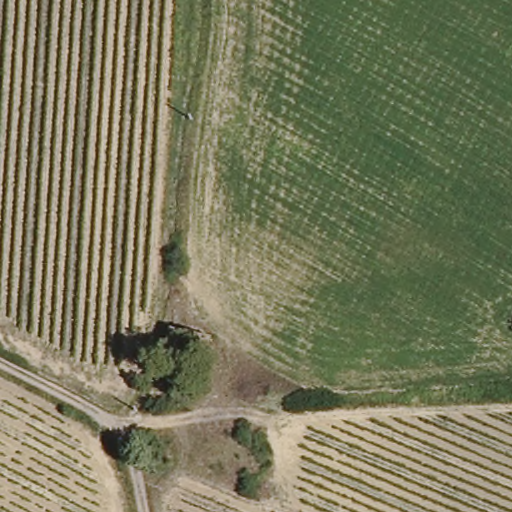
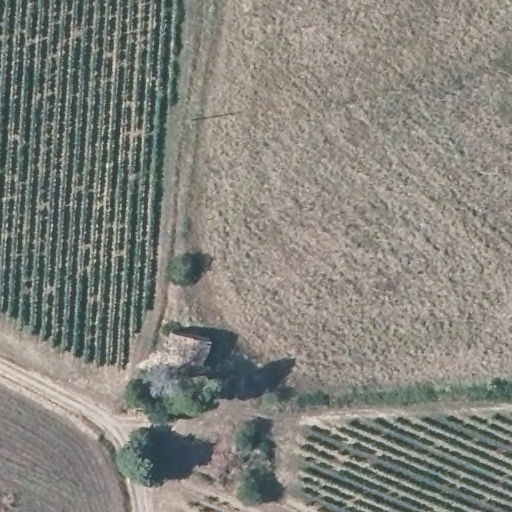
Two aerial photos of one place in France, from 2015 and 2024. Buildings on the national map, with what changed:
unchanged [(169,331),(205,333),(204,366),(167,362),(169,331)]

